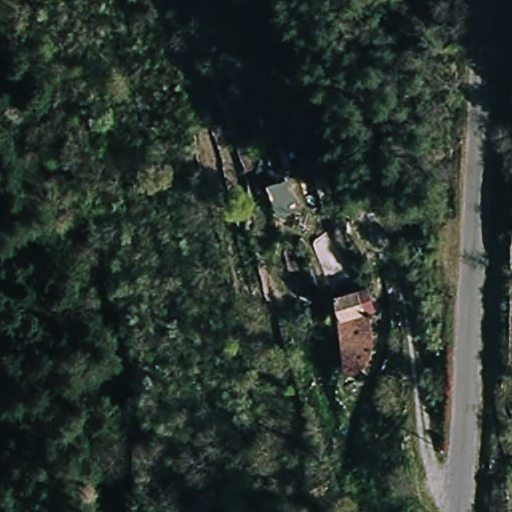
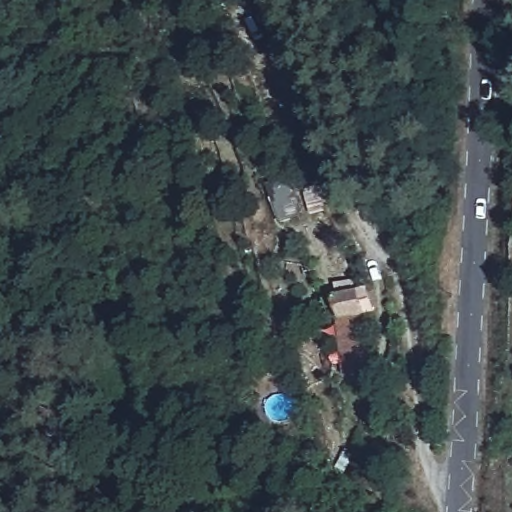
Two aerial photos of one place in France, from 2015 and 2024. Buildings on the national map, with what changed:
unchanged [(290,178),(301,209),(280,215),(269,185),(290,178)]
unchanged [(336,295),(368,289),(375,311),(374,350),(364,372),(345,374),(341,318),(336,295)]
unchanged [(507,454),(497,454),(496,454),(495,433),(512,433),(512,452),(507,454)]

